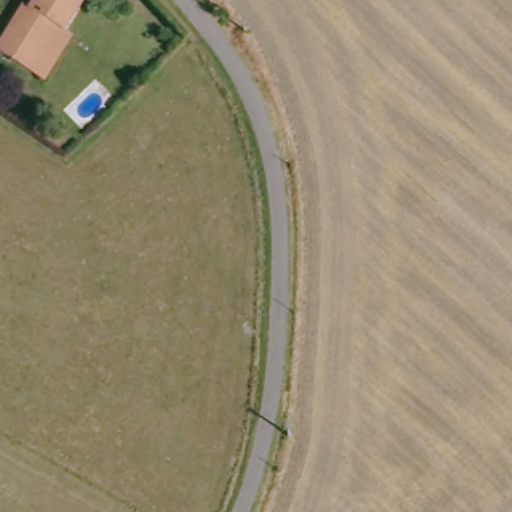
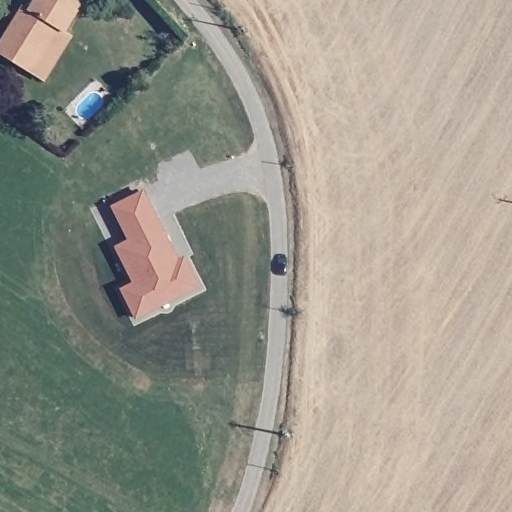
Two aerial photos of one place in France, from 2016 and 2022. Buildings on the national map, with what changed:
unchanged [(0,53),(0,45),(24,6),(30,9),(36,0),(82,0),(83,0),(65,31),(73,36),(45,80),(31,71),(0,53)]
new [(113,203),(142,188),(178,257),(184,254),(198,282),(137,313),(123,285),(135,278),(117,243),(131,236),(113,203)]

